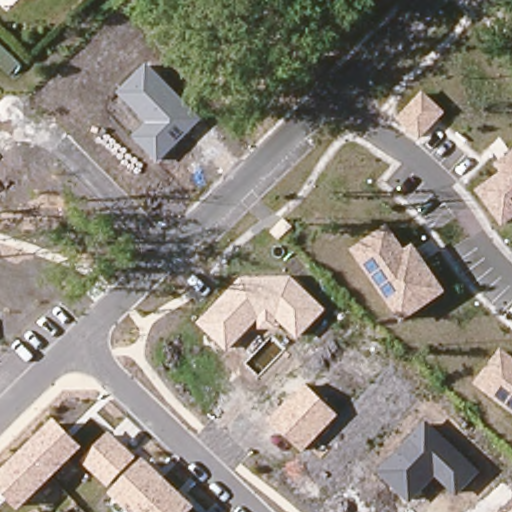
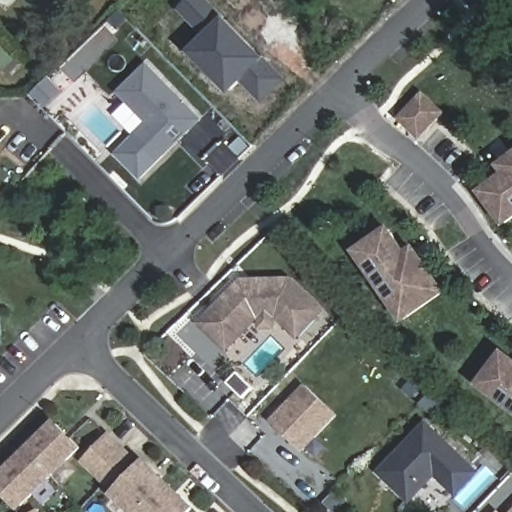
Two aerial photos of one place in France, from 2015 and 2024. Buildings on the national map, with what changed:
new [(264,104),(243,83),(232,95),(189,51),(204,34),(180,9),(189,0),(212,0),(230,17),(228,20),(267,56),(267,55),(288,78),(264,104)]
unchanged [(162,163),(136,136),(149,123),(123,97),(123,90),(150,64),(203,118),(162,163)]
unchanged [(446,113),(423,139),(398,118),(422,91),(446,113)]
unchanged [(496,164),(512,154),(512,223),(505,227),(478,190),(503,173),(496,164)]
unchanged [(1,156),(0,158),(0,156),(1,156)]
unchanged [(449,293),(403,325),(353,250),(390,226),(407,251),(416,245),(449,293)]
unchanged [(300,339),(279,320),(279,330),(260,330),(260,319),(228,351),(199,320),(243,277),(290,274),(328,311),(300,339)]
unchanged [(502,350),(512,357),(512,412),(476,386),(502,350)]
unchanged [(303,454),(271,423),(309,383),(342,415),(303,454)]
unchanged [(113,488),(79,455),(85,449),(76,439),(99,416),(197,509),(196,512),(128,512),(109,493),(113,488)]
unchanged [(457,499),(436,477),(412,502),(379,470),(428,417),(482,471),(457,499)]
unchanged [(85,449),(79,455),(18,511),(0,491),(0,474),(57,420),(76,439),(85,449)]
unchanged [(36,512),(41,508),(44,512),(36,512)]
unchanged [(501,512),(498,512),(499,510),(501,512)]
unchanged [(512,512),(511,512),(512,511),(512,512)]

